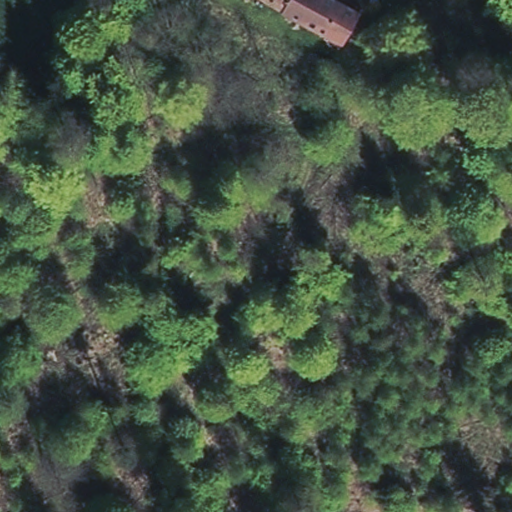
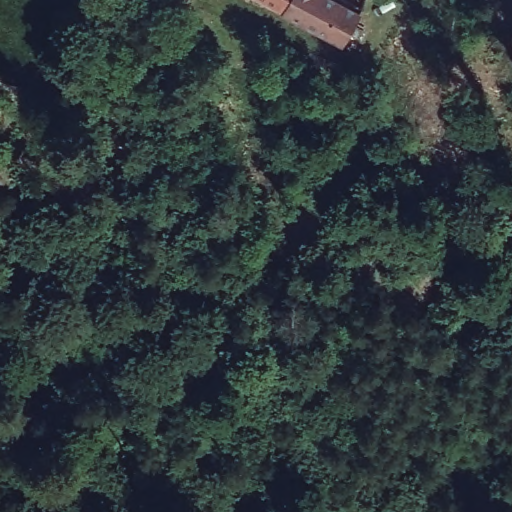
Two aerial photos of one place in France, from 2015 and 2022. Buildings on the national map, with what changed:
unchanged [(315,1),(357,23),(340,52),(282,18),(282,16),(255,0),(315,0),(315,1)]

